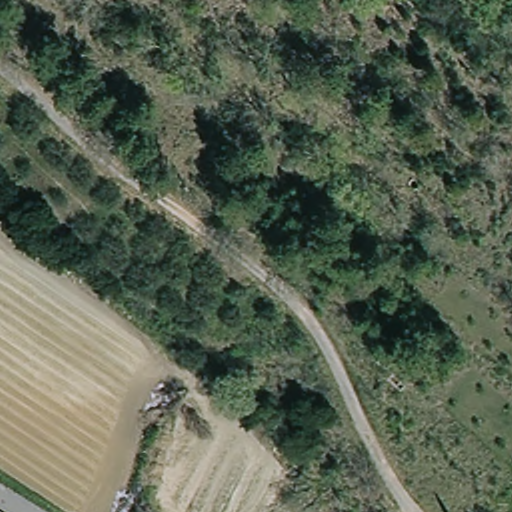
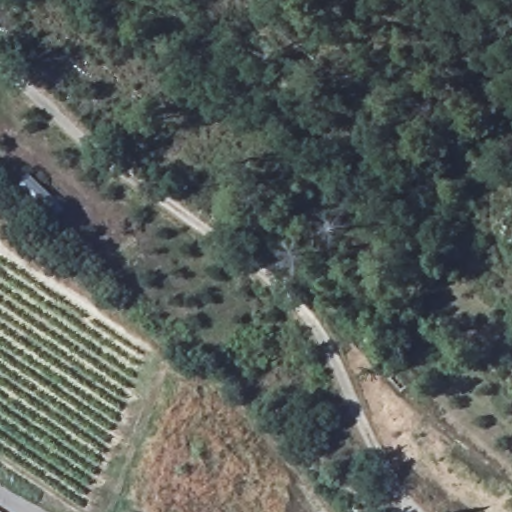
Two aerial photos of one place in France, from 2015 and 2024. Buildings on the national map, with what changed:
[]

